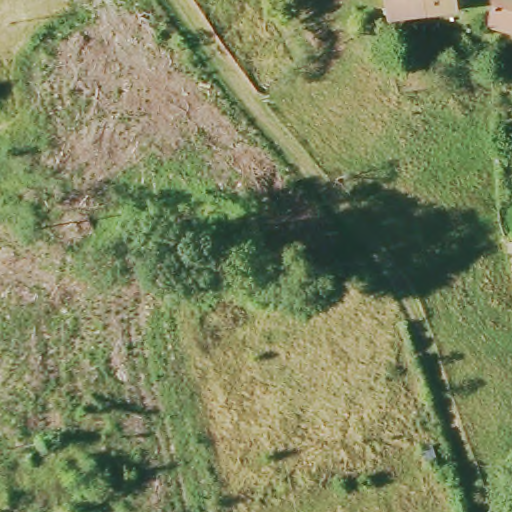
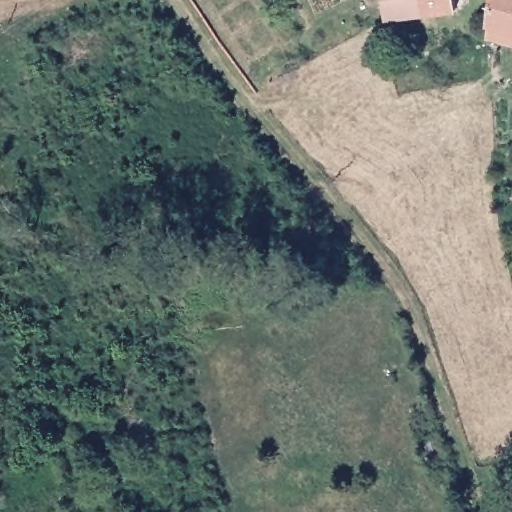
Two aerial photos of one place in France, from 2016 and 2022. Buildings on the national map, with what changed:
unchanged [(389,19),(387,0),(455,0),(456,12),(389,19)]
unchanged [(489,34),(494,0),(512,0),(512,39),(489,34)]

